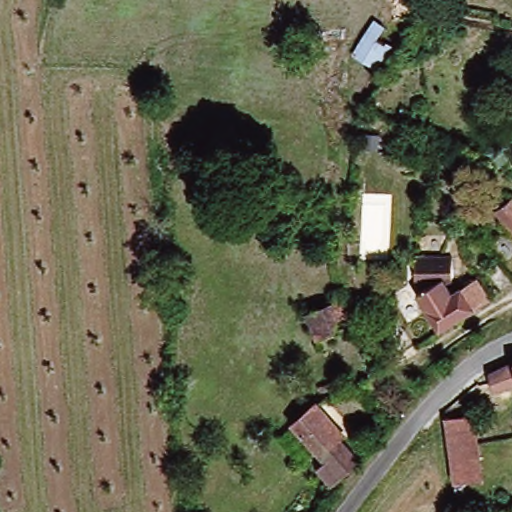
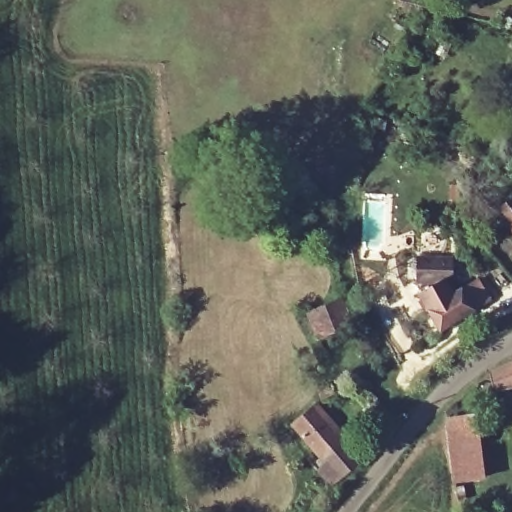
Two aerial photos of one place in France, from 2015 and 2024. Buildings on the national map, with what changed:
unchanged [(492,213),(512,198),(512,237),(492,213)]
unchanged [(417,298),(435,287),(415,287),(415,260),(451,260),(451,287),(457,283),(463,292),(477,283),(490,302),(475,313),(441,336),(417,298)]
unchanged [(327,342),(315,318),(345,302),(357,327),(327,342)]
unchanged [(493,395),(490,377),(505,368),(512,366),(512,390),(493,395)]
unchanged [(317,470),(325,464),(308,439),(297,421),(320,405),(327,417),(325,420),(346,450),(343,452),(356,470),(338,483),(330,490),(317,470)]
unchanged [(452,432),(450,424),(468,417),(469,425),(478,470),(453,475),(447,442),(445,436),(452,432)]
unchanged [(457,498),(459,512),(452,512),(449,501),(457,498)]

